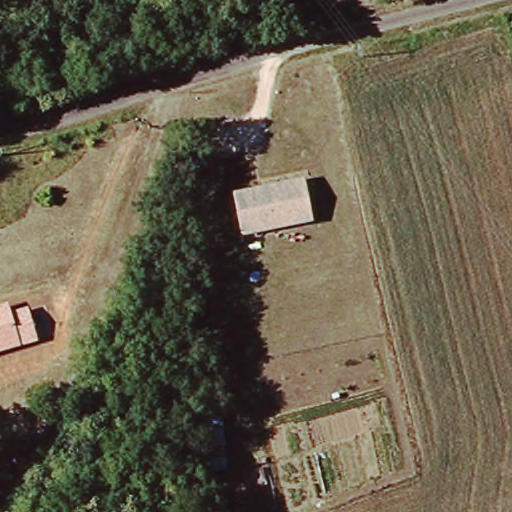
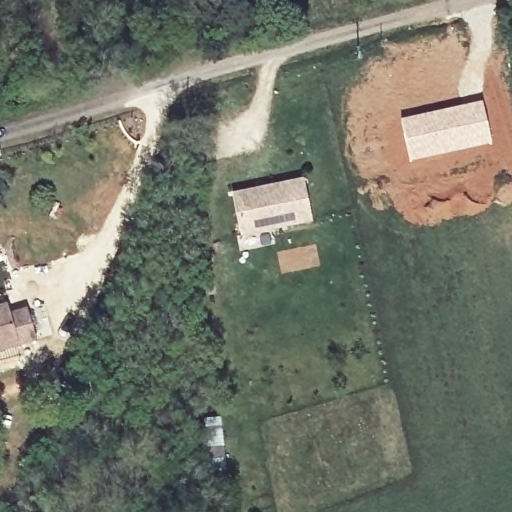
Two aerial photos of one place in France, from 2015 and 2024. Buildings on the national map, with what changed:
new [(482,101),(491,144),(409,161),(400,119),(482,101)]
unchanged [(302,184),(310,223),(270,231),(261,193),(302,184)]
unchanged [(261,193),(270,231),(238,238),(229,199),(261,193)]
unchanged [(26,312),(44,307),(51,335),(35,340),(0,350),(0,309),(6,308),(8,314),(8,316),(26,312)]

